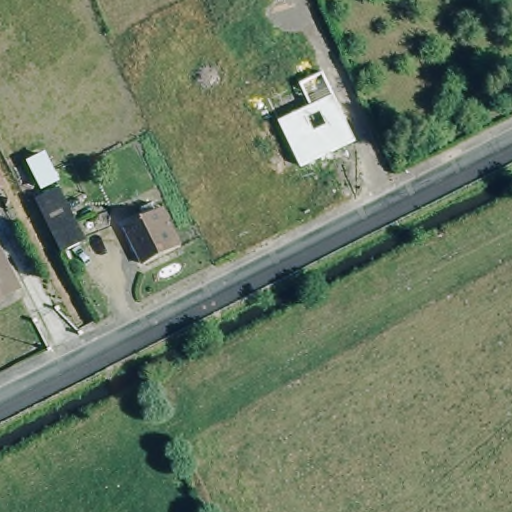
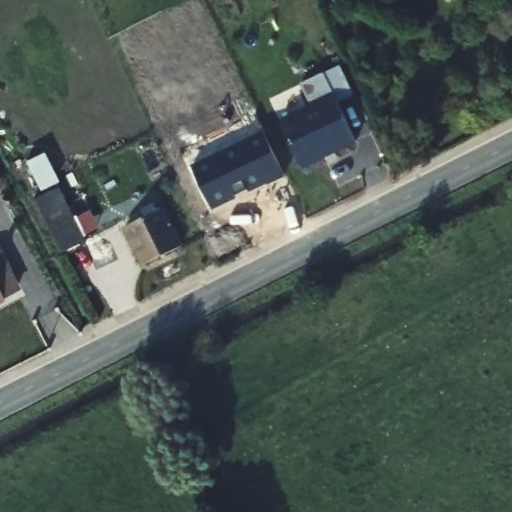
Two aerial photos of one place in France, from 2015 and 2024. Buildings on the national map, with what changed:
unchanged [(356,141),(301,166),(281,122),(311,106),(300,84),(322,74),(356,141)]
new [(192,166),(265,132),(285,176),(251,192),(250,189),(237,194),(238,198),(214,209),(192,166)]
unchanged [(52,188),(81,238),(60,249),(32,198),(52,188)]
unchanged [(142,266),(125,229),(161,210),(181,247),(142,266)]
unchanged [(1,296),(4,303),(0,305),(0,256),(1,256),(17,287),(1,296)]

